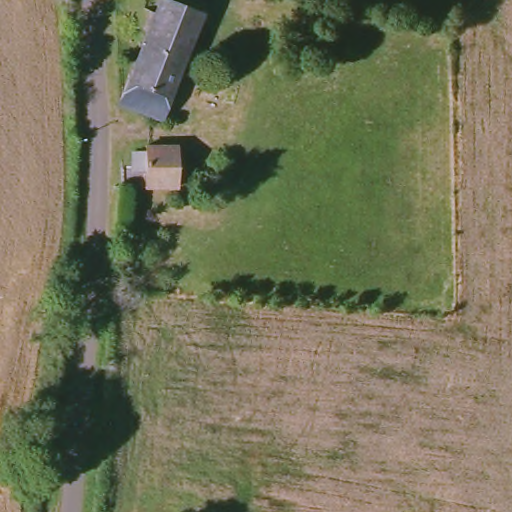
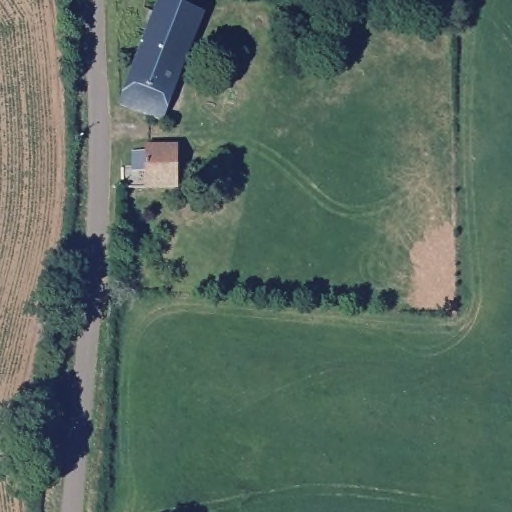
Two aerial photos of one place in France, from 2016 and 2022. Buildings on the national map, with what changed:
unchanged [(117,103),(158,0),(167,0),(202,14),(160,120),(117,104),(117,103)]
unchanged [(180,188),(150,188),(150,170),(136,170),(136,153),(150,153),(150,146),(180,146),(180,188)]

